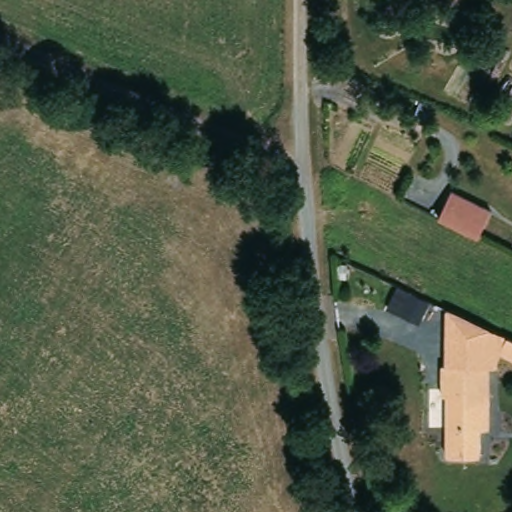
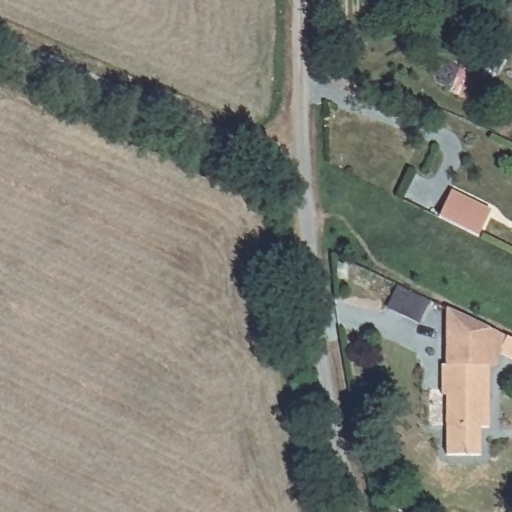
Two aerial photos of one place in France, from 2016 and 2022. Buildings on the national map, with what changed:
unchanged [(435,183),(475,204),(462,230),(421,210),(435,183)]
unchanged [(446,310),(472,321),(495,332),(494,372),(446,371),(446,310)]
unchanged [(512,359),(503,354),(511,339),(512,340),(512,359)]
unchanged [(492,433),(485,434),(485,463),(448,462),(450,430),(445,430),(446,371),(494,372),(492,433)]

